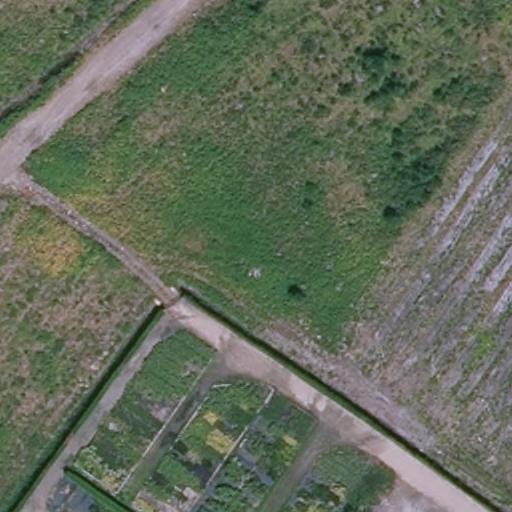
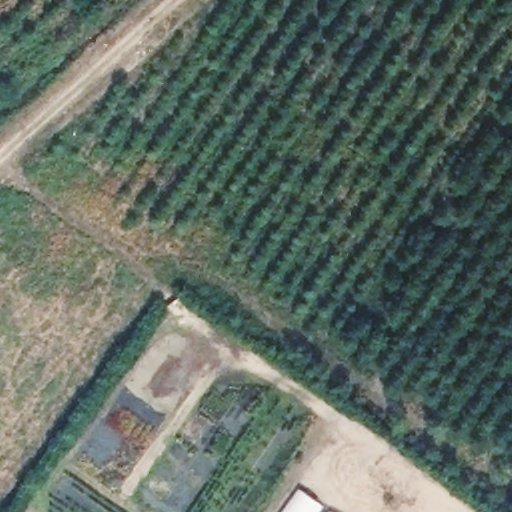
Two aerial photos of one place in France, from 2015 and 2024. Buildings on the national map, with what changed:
new [(298,488),(322,505),(318,512),(281,512),(298,488)]
new [(330,511),(332,512),(328,512),(330,511)]

